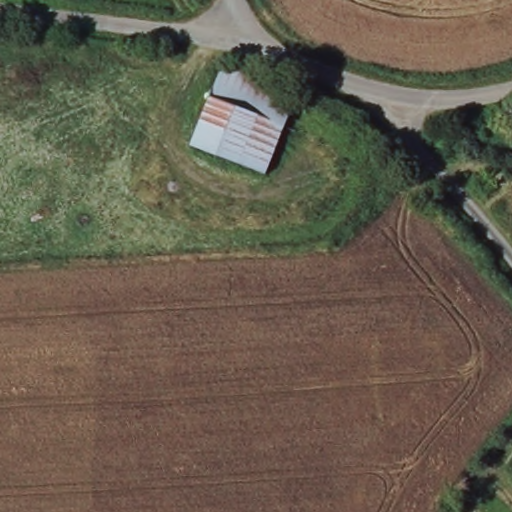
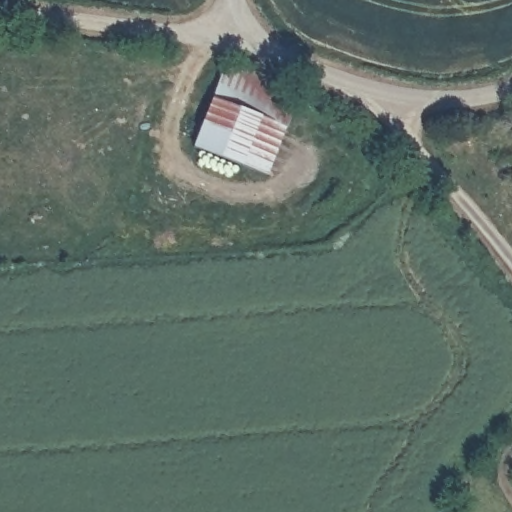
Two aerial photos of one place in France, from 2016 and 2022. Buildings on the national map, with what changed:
unchanged [(295,96),(266,171),(195,145),(222,67),(295,96)]

